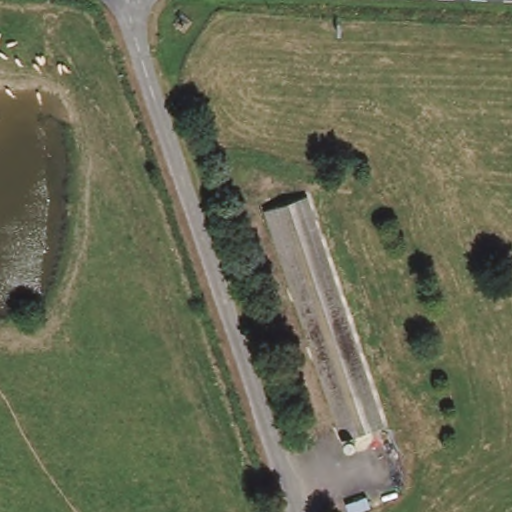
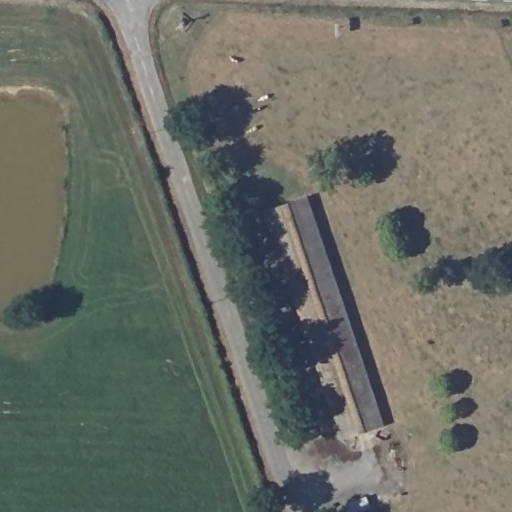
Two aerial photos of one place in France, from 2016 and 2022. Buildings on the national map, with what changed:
unchanged [(313,199),(389,428),(349,442),(271,211),(313,199)]

